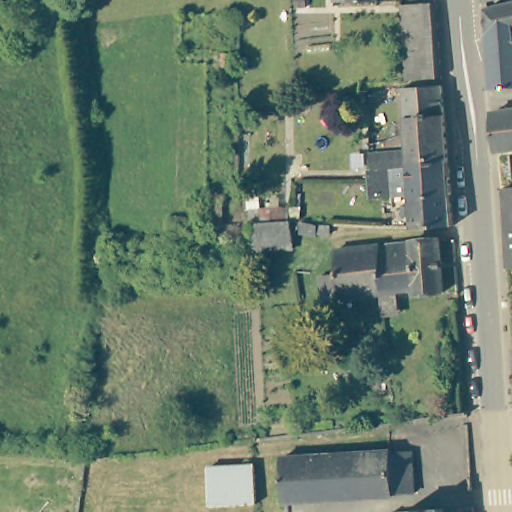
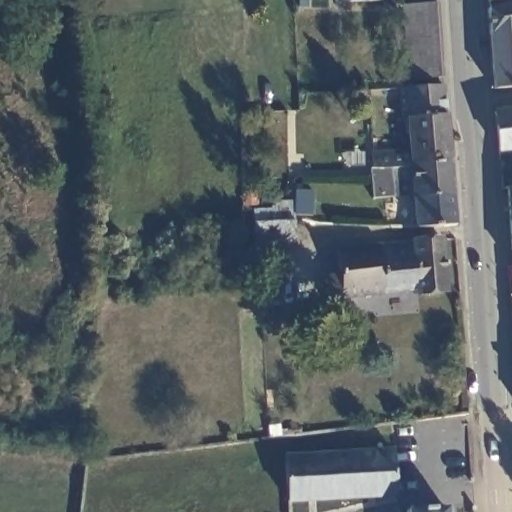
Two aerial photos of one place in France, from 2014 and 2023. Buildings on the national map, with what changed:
unchanged [(407,75),(401,0),(409,0),(436,0),(442,73),(407,75)]
unchanged [(492,0),(498,0),(493,1),(492,0)]
unchanged [(512,5),(512,88),(497,88),(492,9),(494,9),(512,5)]
unchanged [(407,111),(404,82),(442,80),(445,107),(447,134),(449,157),(451,189),(414,191),(414,189),(412,162),(412,160),(409,136),(407,111)]
unchanged [(503,148),(503,144),(501,144),(499,109),(512,109),(512,148),(503,148)]
unchanged [(368,171),(391,170),(392,190),(370,191),(368,171)]
unchanged [(511,186),(512,186),(512,206),(511,186)]
unchanged [(414,191),(451,189),(454,219),(429,222),(417,223),(414,191)]
unchanged [(287,205),(290,216),(292,248),(250,249),(250,220),(250,204),(287,205)]
unchanged [(411,241),(440,238),(445,291),(415,294),(415,290),(411,241)]
unchanged [(415,290),(398,291),(399,312),(383,314),(381,292),(382,291),(378,244),(411,241),(415,290)]
unchanged [(322,296),(319,273),(338,271),(336,247),(378,244),(382,291),(381,292),(322,296)]
unchanged [(399,495),(294,501),(290,501),(288,454),(397,449),(397,451),(399,493),(399,495)]
demolished [(210,465),(257,462),(259,502),(213,505),(210,465)]
unchanged [(447,507),(447,512),(408,512),(408,509),(447,507)]

